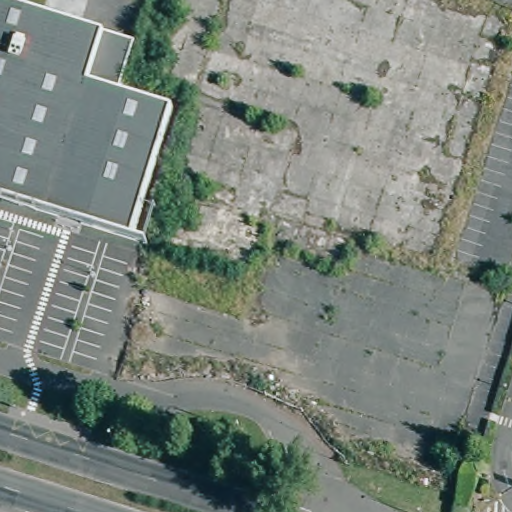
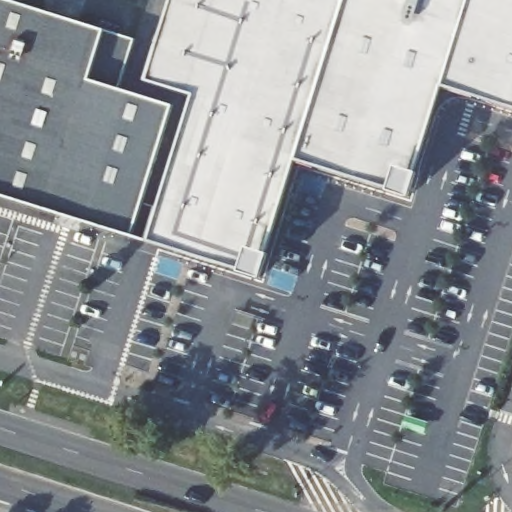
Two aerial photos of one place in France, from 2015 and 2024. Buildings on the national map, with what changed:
unchanged [(119,80),(173,97),(131,228),(0,187),(0,0),(38,0),(135,31),(119,80)]
new [(454,102),(412,215),(278,171),(249,271),(131,228),(173,97),(119,80),(135,31),(148,0),(512,0),(512,120),(454,102)]
demolished [(454,444),(469,448),(462,473),(446,468),(454,444)]

